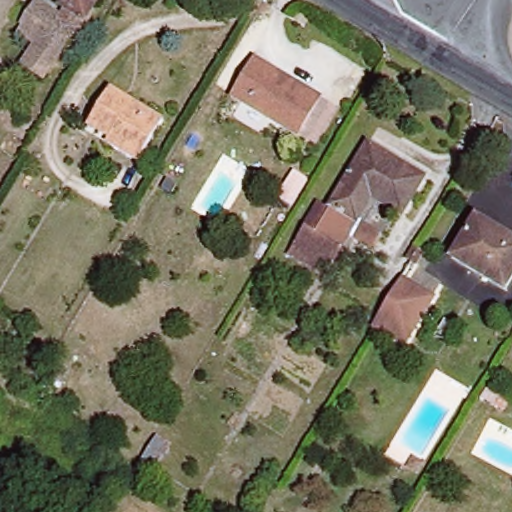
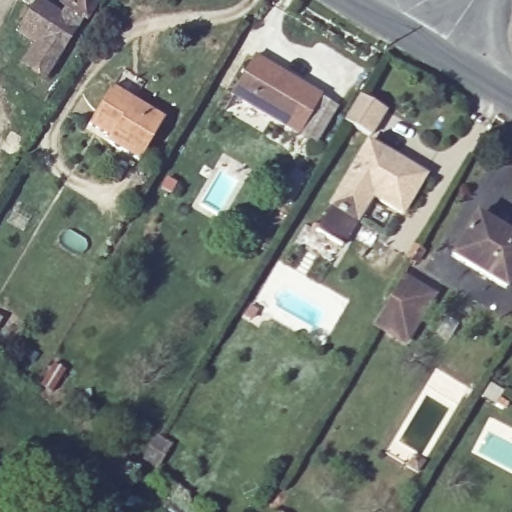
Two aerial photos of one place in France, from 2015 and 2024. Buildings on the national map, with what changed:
unchanged [(23,24),(35,4),(59,19),(66,7),(61,4),(63,0),(96,0),(84,19),(81,16),(43,76),(26,66),(45,37),(23,24)]
unchanged [(230,95),(252,56),(320,97),(297,134),(230,95)]
unchanged [(137,161),(105,142),(108,138),(86,125),(105,92),(127,105),(130,100),(162,120),(137,161)]
new [(359,94),(387,111),(371,136),(343,120),(359,94)]
unchanged [(297,246),(292,244),(303,225),(313,231),(366,141),(423,175),(400,215),(365,194),(350,219),(355,221),(328,265),(323,274),(292,255),(297,246)]
unchanged [(503,288),(450,256),(475,216),(512,238),(512,274),(503,288)]
unchanged [(377,232),(369,246),(354,236),(362,224),(377,232)]
unchanged [(405,258),(412,246),(416,248),(421,251),(414,263),(409,260),(405,258)]
unchanged [(430,296),(405,337),(374,319),(399,277),(430,296)]
unchanged [(40,387),(54,364),(62,369),(49,393),(40,387)]
unchanged [(135,467),(154,436),(167,444),(149,475),(135,467)]

